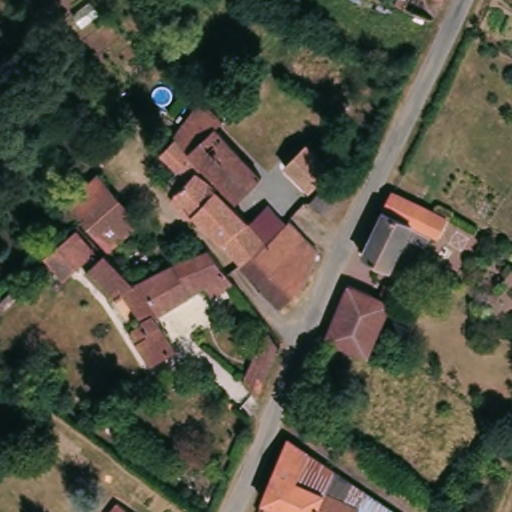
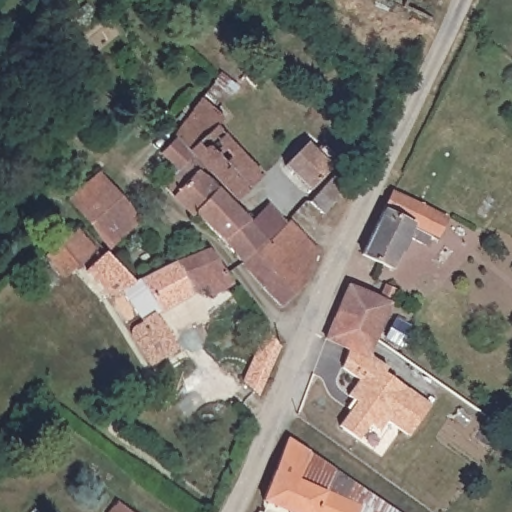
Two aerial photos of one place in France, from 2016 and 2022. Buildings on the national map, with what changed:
unchanged [(441,5),(427,0),(443,0),(441,5)]
new [(183,15),(186,14),(189,15),(191,17),(190,21),(187,22),(182,20),(182,17),(183,15)]
unchanged [(216,90),(223,98),(209,113),(221,126),(212,134),(257,183),(250,190),(232,207),(201,172),(192,164),(189,160),(168,136),(216,90)]
unchanged [(281,147),(276,141),(286,131),(319,164),(297,186),(269,159),(281,147)]
unchanged [(226,250),(194,219),(191,222),(161,192),(175,176),(156,157),(170,143),(188,161),(189,160),(192,164),(201,172),(197,176),(195,178),(227,212),(239,224),(260,246),(271,256),(249,269),(243,272),(226,250)]
unchanged [(333,179),(307,208),(296,197),(298,194),(322,170),(333,179)]
unchanged [(66,207),(70,204),(62,194),(76,182),(85,192),(100,179),(142,224),(107,254),(77,222),(66,207)]
unchanged [(271,256),(260,246),(239,224),(227,212),(230,210),(232,207),(250,190),(276,217),(288,230),(315,258),(300,293),(283,317),(243,272),(249,269),(271,256)]
unchanged [(442,223),(432,246),(427,243),(425,249),(402,240),(386,272),(359,257),(390,196),(442,223)]
unchanged [(74,235),(92,257),(77,270),(57,249),(74,235)]
unchanged [(136,343),(131,334),(132,327),(141,323),(142,318),(122,290),(119,287),(110,296),(85,272),(104,253),(136,283),(140,278),(174,262),(209,247),(233,285),(211,296),(206,286),(188,295),(158,310),(153,313),(177,350),(152,366),(136,343)]
unchanged [(350,287),(378,300),(385,289),(397,296),(392,307),(375,342),(367,359),(327,341),(335,322),(350,287)]
unchanged [(268,347),(276,355),(254,405),(239,390),(262,340),(268,347)]
new [(388,368),(384,373),(430,405),(408,436),(386,421),(379,430),(371,424),(357,442),(337,427),(356,402),(347,397),(358,381),(342,370),(348,351),(367,359),(369,354),(388,368)]
unchanged [(307,459),(324,471),(386,512),(266,512),(257,508),(282,443),(307,459)]
unchanged [(129,512),(112,512),(119,503),(129,512)]

